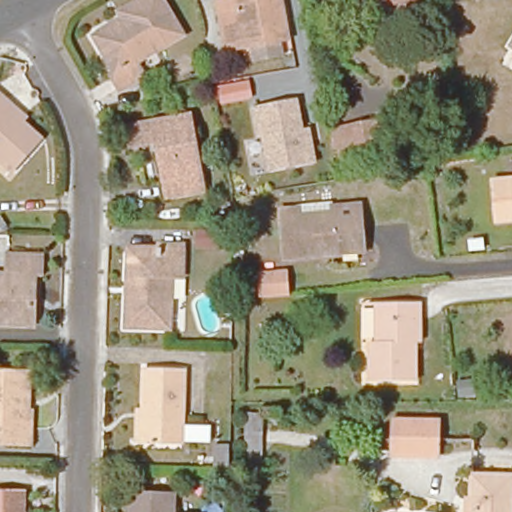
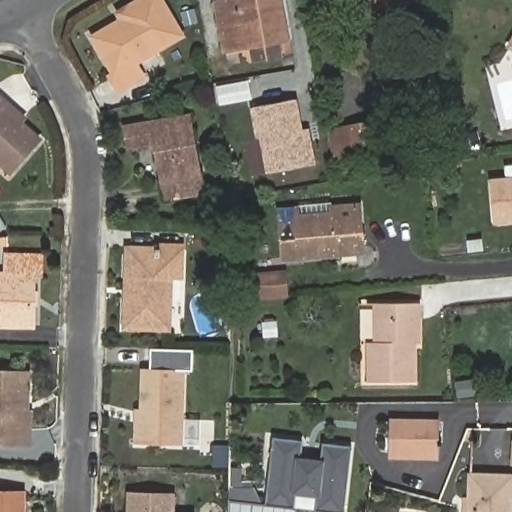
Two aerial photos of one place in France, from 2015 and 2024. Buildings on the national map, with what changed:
unchanged [(144,77),(119,91),(109,76),(113,74),(89,35),(120,17),(116,10),(133,0),(162,0),(183,35),(136,63),(144,77)]
unchanged [(225,49),(217,3),(230,1),(233,0),(283,0),(290,39),(225,49)]
unchanged [(375,0),(417,0),(377,9),(375,0)]
unchanged [(0,161),(0,98),(5,102),(1,106),(40,140),(11,172),(0,161)]
unchanged [(310,127),(316,162),(267,173),(260,137),(256,139),(251,107),(299,99),(304,127),(310,127)]
unchanged [(395,117),(401,149),(355,159),(336,162),(330,131),(348,127),(395,117)]
unchanged [(189,120),(204,197),(165,204),(155,147),(138,151),(135,129),(189,120)]
unchanged [(496,231),(493,192),(512,190),(512,229),(496,231)]
unchanged [(288,271),(283,217),(303,216),(304,223),(335,221),(335,215),(365,212),(368,265),(288,271)]
unchanged [(196,232),(216,232),(231,232),(231,246),(216,246),(216,248),(196,247),(196,232)]
unchanged [(154,246),(181,247),(181,280),(170,279),(169,328),(126,327),(127,302),(134,302),(135,292),(127,292),(129,254),(154,255),(154,246)]
unchanged [(40,276),(34,276),(33,326),(0,325),(0,274),(6,274),(7,257),(41,257),(40,276)]
unchanged [(289,296),(257,299),(255,272),(286,269),(289,296)]
unchanged [(420,360),(420,392),(374,392),(373,352),(380,352),(380,313),(424,312),(424,352),(410,352),(410,360),(420,360)]
unchanged [(280,325),(280,339),(263,340),(263,326),(280,325)]
unchanged [(144,369),(184,371),(181,445),(141,444),(144,369)]
unchanged [(0,443),(0,372),(34,373),(33,393),(25,393),(25,412),(32,412),(36,412),(35,445),(0,443)]
demolished [(259,435),(244,434),(245,418),(259,419),(259,435)]
unchanged [(390,422),(438,422),(438,455),(390,454),(390,422)]
new [(355,447),(347,512),(337,512),(317,510),(320,496),(299,495),(297,508),(267,504),(275,438),(303,441),(301,457),(323,460),(325,443),(355,447)]
new [(512,440),(512,466),(511,466),(512,440)]
unchanged [(471,480),(512,481),(512,499),(512,512),(470,512),(471,480)]
unchanged [(0,493),(29,493),(29,512),(0,512),(0,493)]
unchanged [(135,495),(178,497),(178,512),(134,512),(135,495)]

